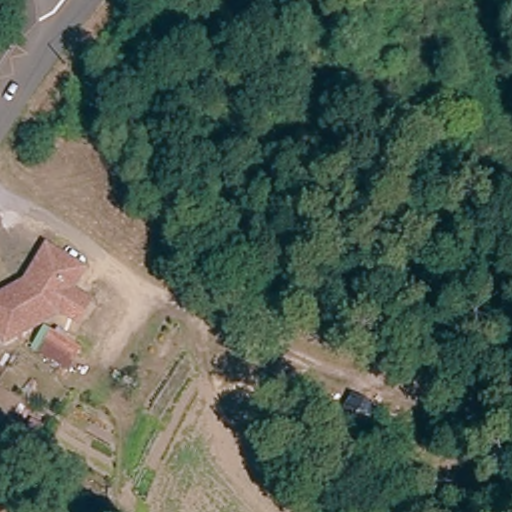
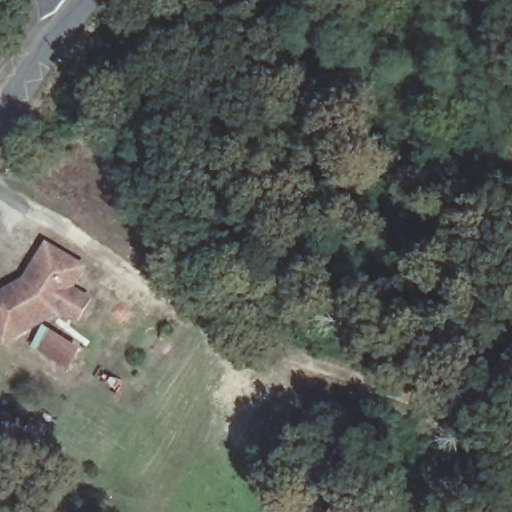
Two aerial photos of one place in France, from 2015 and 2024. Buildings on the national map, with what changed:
unchanged [(61,313),(60,316),(9,346),(0,331),(0,302),(20,291),(30,285),(51,250),(86,272),(74,293),(92,305),(80,325),(61,313)]

